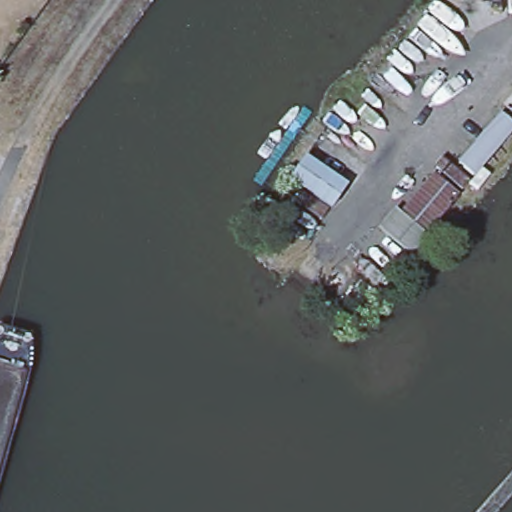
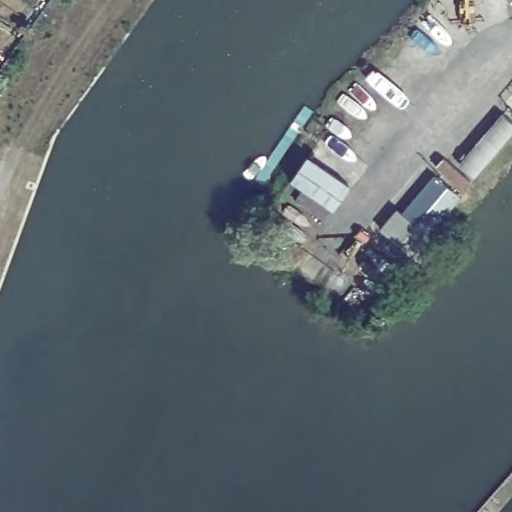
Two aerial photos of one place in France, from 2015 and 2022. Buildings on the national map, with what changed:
unchanged [(512,137),(482,173),(467,160),(510,110),(512,112),(512,137)]
unchanged [(290,179),(305,156),(345,183),(327,205),(290,179)]
unchanged [(434,174),(460,194),(430,232),(402,210),(434,174)]
unchanged [(402,210),(430,232),(439,239),(417,264),(377,231),(400,208),(402,210)]

